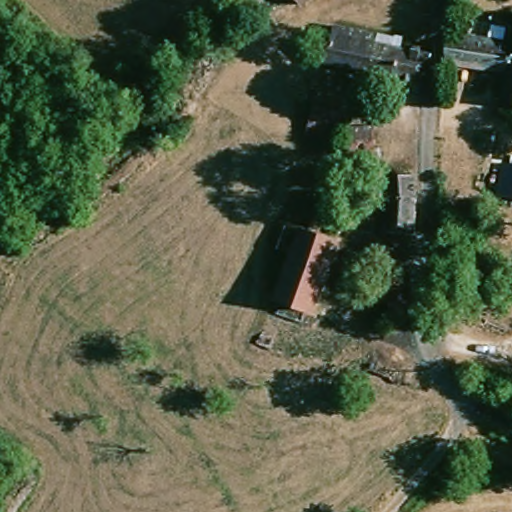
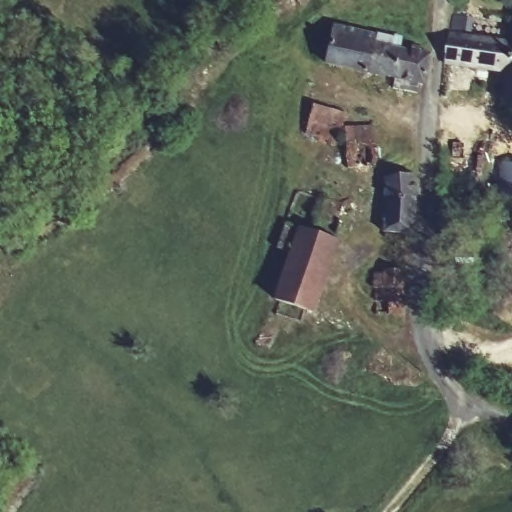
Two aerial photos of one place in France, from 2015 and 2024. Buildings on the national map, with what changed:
unchanged [(300,8),(293,0),(312,0),(300,8)]
unchanged [(320,60),(327,25),(375,31),(375,36),(429,47),(421,80),(320,60)]
unchanged [(512,49),(509,73),(446,67),(450,37),(512,45),(512,49)]
unchanged [(509,73),(512,49),(512,105),(506,104),(509,73)]
unchanged [(339,145),(307,137),(313,108),(345,115),(339,145)]
unchanged [(370,146),(373,167),(347,172),(343,151),(370,146)]
unchanged [(512,200),(489,199),(492,163),(512,165),(512,200)]
unchanged [(420,209),(412,240),(381,237),(382,181),(410,181),(420,209)]
unchanged [(286,255),(280,252),(275,250),(282,227),(290,228),(295,229),(336,241),(312,313),(273,297),(286,255)]
unchanged [(385,320),(385,307),(373,307),(370,278),(387,279),(388,273),(406,275),(403,320),(385,320)]

